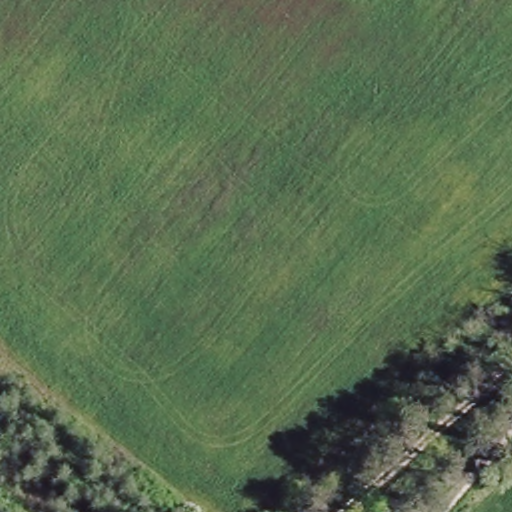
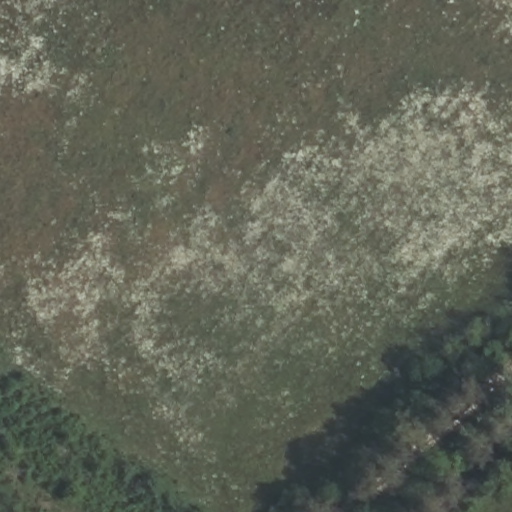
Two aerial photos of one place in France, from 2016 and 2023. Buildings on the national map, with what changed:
[]

